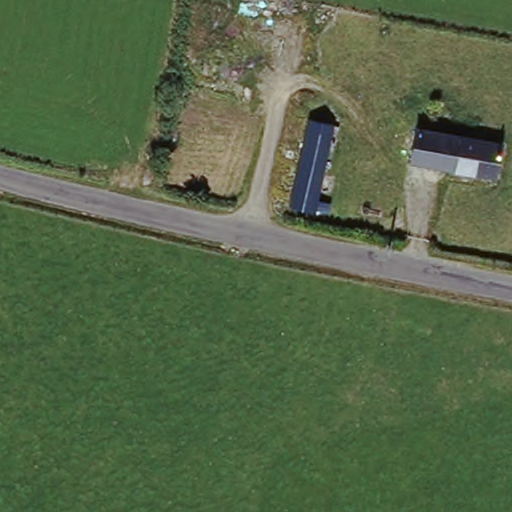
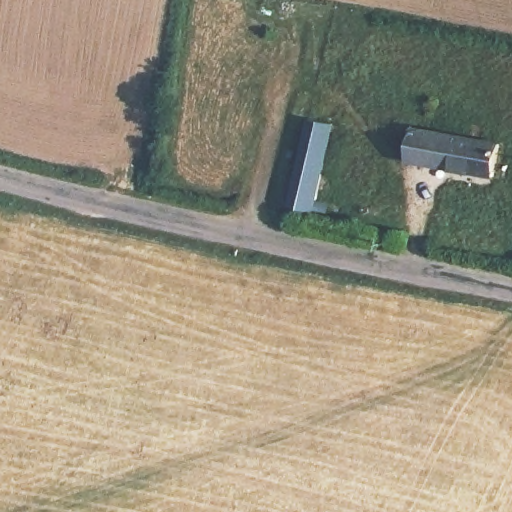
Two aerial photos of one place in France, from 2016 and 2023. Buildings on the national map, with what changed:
unchanged [(338,132),(319,220),(295,214),(315,128),(338,132)]
unchanged [(496,182),(450,174),(414,167),(420,135),(457,141),(502,149),(496,182)]

